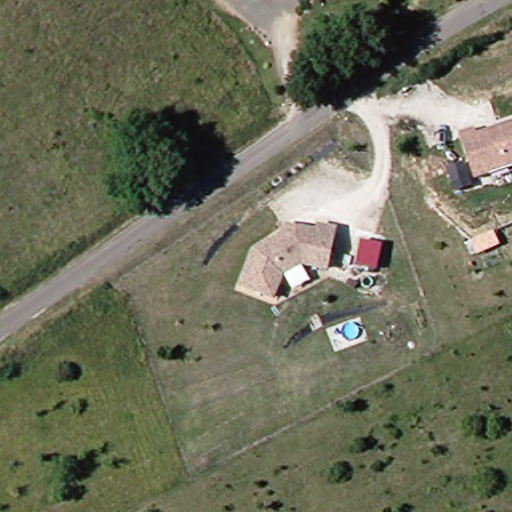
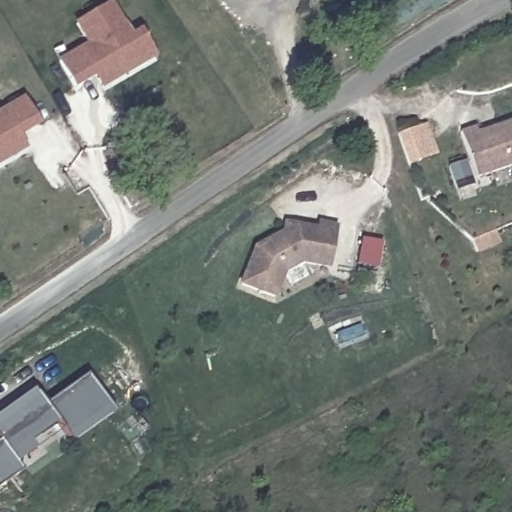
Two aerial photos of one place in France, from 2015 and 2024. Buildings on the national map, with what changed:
new [(83,46),(71,24),(116,0),(149,59),(115,77),(106,62),(100,60),(85,69),(89,76),(67,88),(53,62),(83,46)]
new [(32,127),(11,138),(7,132),(0,135),(0,112),(19,101),(32,127)]
unchanged [(475,126),(477,131),(512,121),(512,166),(475,177),(460,130),(475,126)]
unchanged [(338,221),(333,262),(306,259),(287,267),(279,292),(246,281),(260,244),(287,228),(288,220),(300,221),(321,225),(321,219),(338,221)]
new [(45,406),(87,375),(114,413),(74,445),(58,423),(30,442),(35,450),(15,462),(20,472),(0,487),(0,442),(0,416),(34,390),(45,406)]

